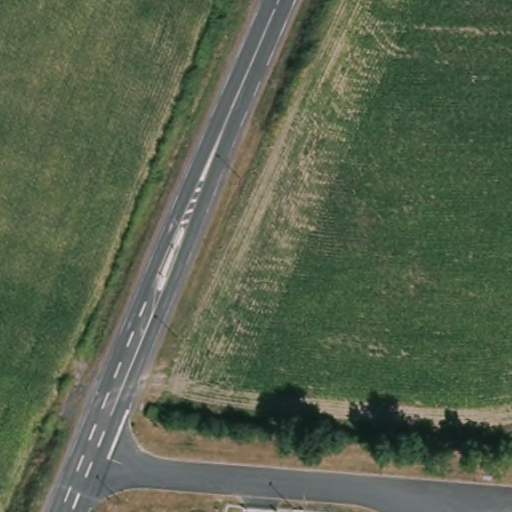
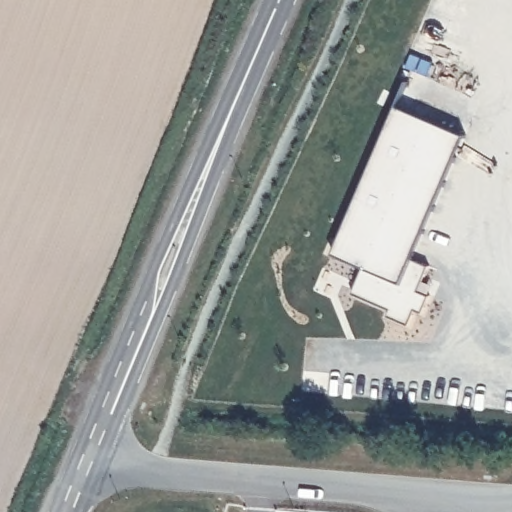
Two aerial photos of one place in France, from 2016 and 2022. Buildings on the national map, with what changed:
new [(427,295),(428,295),(420,313),(414,310),(407,325),(385,315),(388,310),(350,294),(361,267),(331,254),(395,105),(463,135),(410,258),(427,266),(421,280),(431,285),(427,295)]

